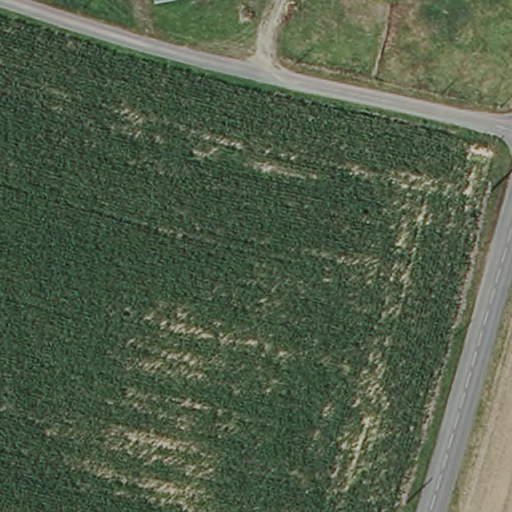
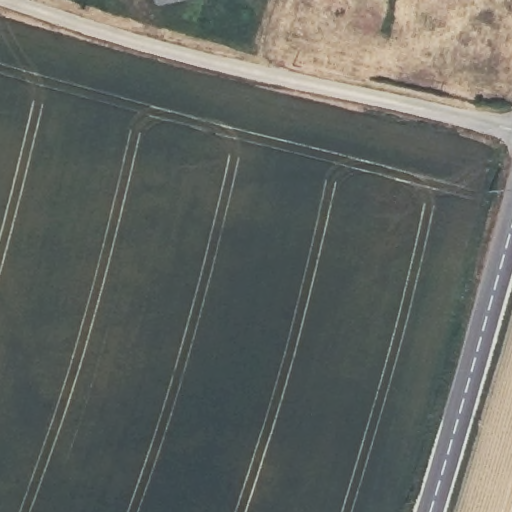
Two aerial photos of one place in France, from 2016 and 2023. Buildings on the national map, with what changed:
unchanged [(152,0),(193,0),(152,4),(152,0)]

